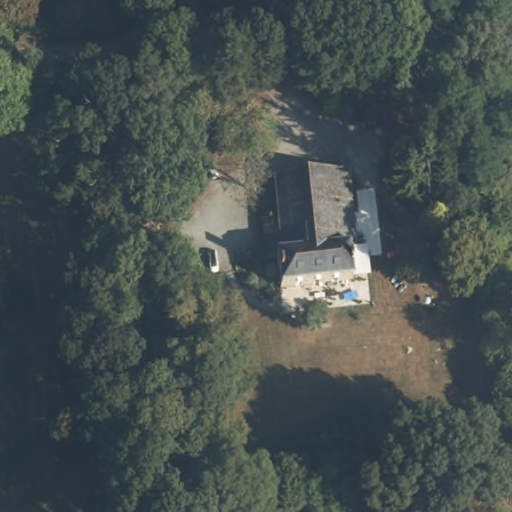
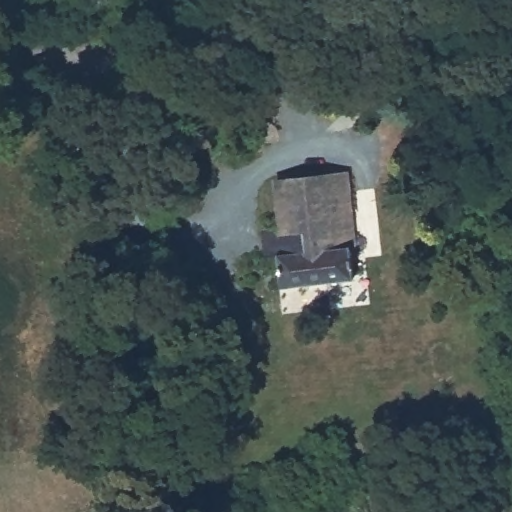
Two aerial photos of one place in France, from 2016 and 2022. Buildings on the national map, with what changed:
unchanged [(350,243),(352,272),(281,280),(280,252),(287,251),(281,173),(350,166),(353,243),(350,243)]
unchanged [(478,239),(473,194),(496,190),(501,237),(478,239)]

